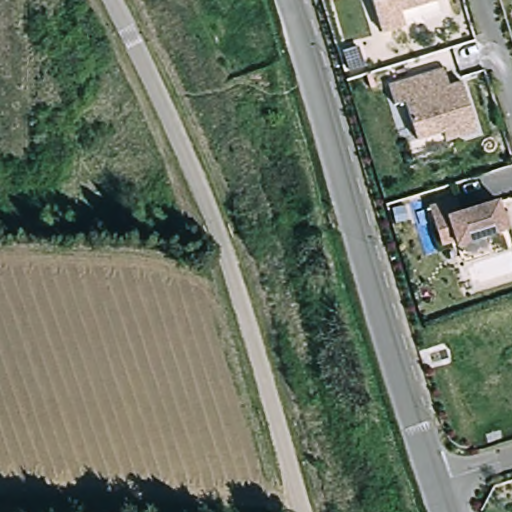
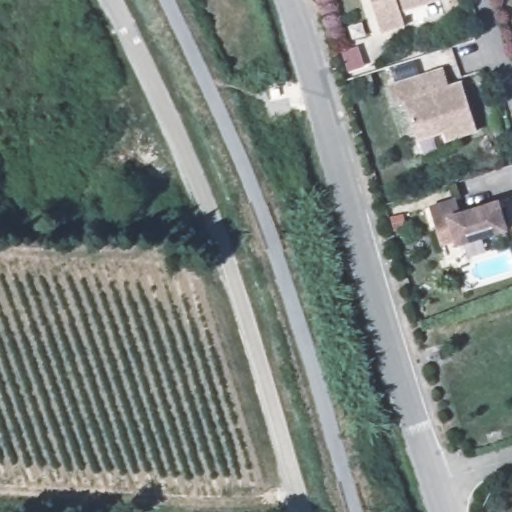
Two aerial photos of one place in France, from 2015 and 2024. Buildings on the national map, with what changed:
unchanged [(404,11),(407,25),(373,33),(366,0),(443,0),(443,2),(404,11)]
unchanged [(416,78),(444,69),(449,86),(462,83),(477,130),(446,139),(444,130),(417,139),(406,101),(395,104),(389,86),(416,78)]
unchanged [(459,196),(464,210),(501,199),(510,228),(460,243),(455,225),(440,229),(433,204),(459,196)]

